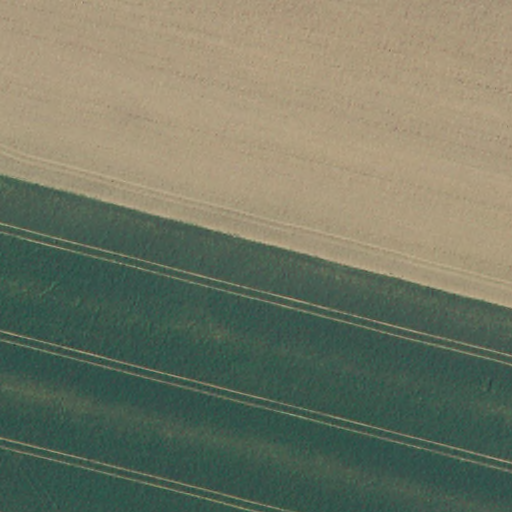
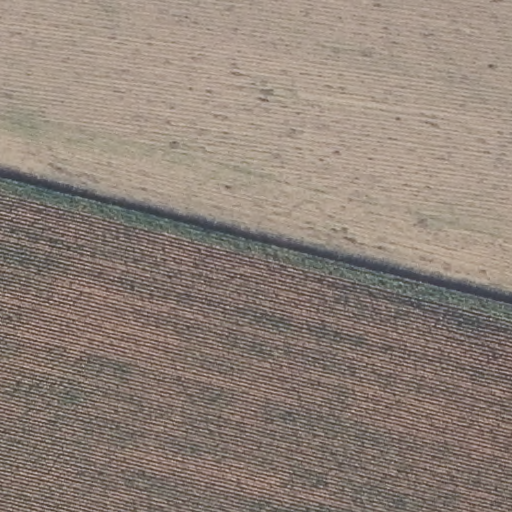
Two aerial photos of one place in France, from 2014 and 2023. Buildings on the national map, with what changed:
[]

